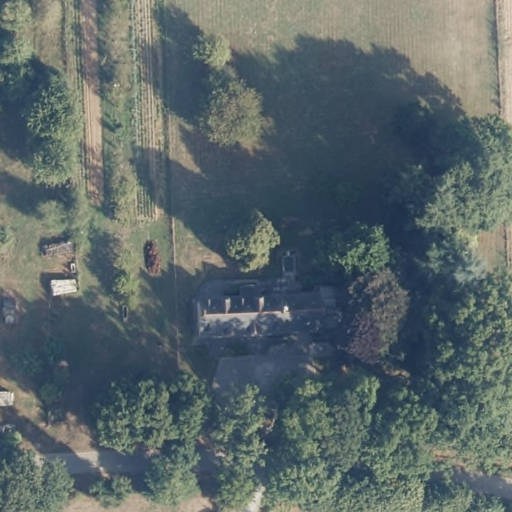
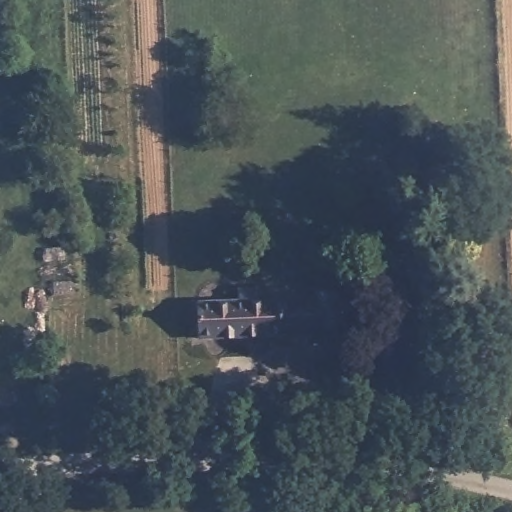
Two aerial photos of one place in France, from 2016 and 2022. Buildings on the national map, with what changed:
unchanged [(321,289),(334,289),(345,297),(350,309),(346,324),(332,332),(198,335),(199,304),(239,303),(240,292),(258,291),(258,302),(310,299),(320,299),(321,289)]

